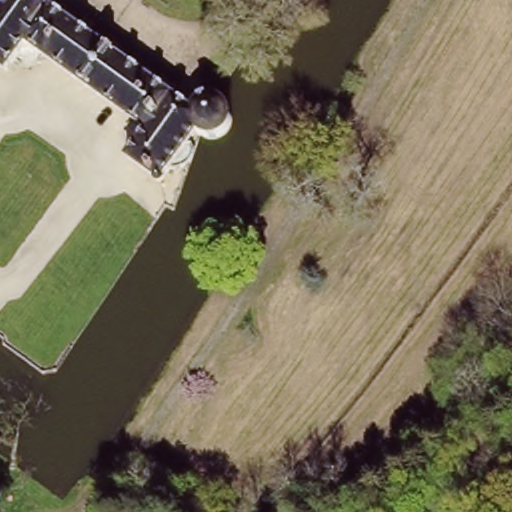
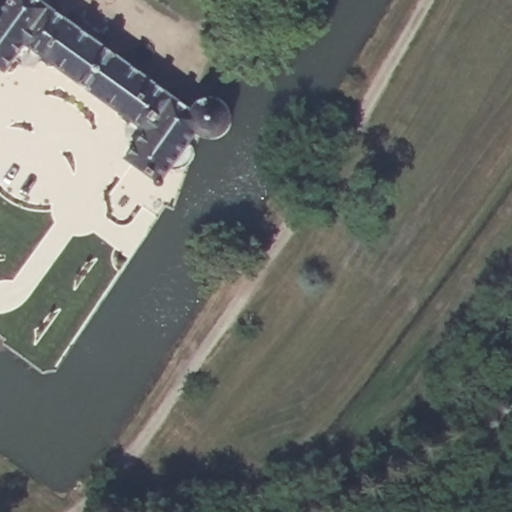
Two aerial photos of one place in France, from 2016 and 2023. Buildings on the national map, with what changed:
unchanged [(158,186),(128,162),(149,136),(35,49),(15,75),(0,64),(0,24),(9,12),(0,7),(0,0),(44,0),(183,105),(194,96),(208,97),(214,104),(218,109),(218,123),(208,135),(196,137),(198,141),(200,151),(199,153),(199,155),(194,164),(176,162),(158,186)]

